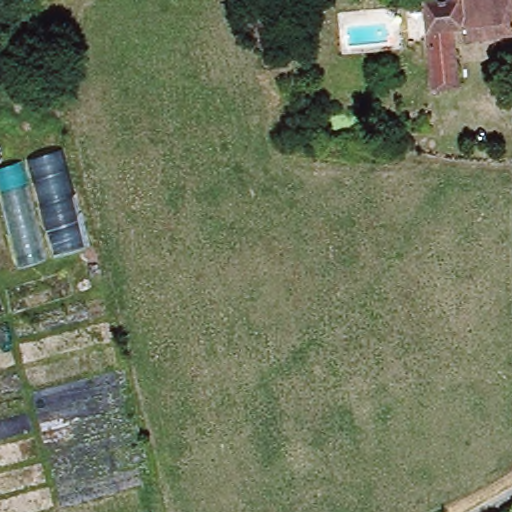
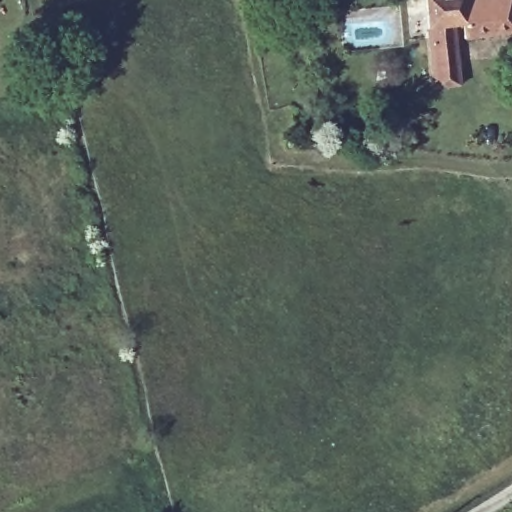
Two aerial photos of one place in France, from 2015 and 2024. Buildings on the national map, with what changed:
unchanged [(463,26),(457,27),(462,85),(433,88),(425,0),(512,0),(512,29),(465,34),(463,26)]
demolished [(60,149),(89,247),(19,268),(0,194),(0,167),(60,149)]

